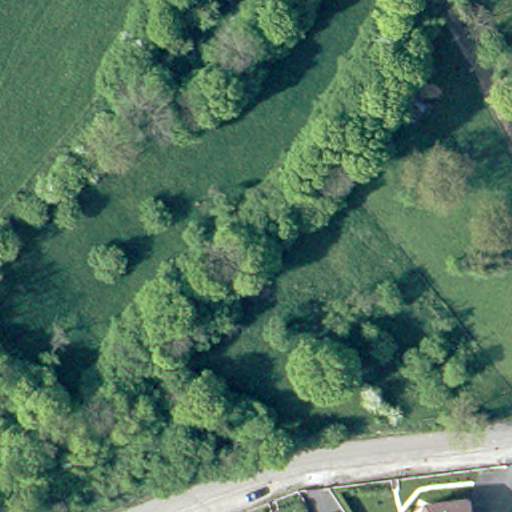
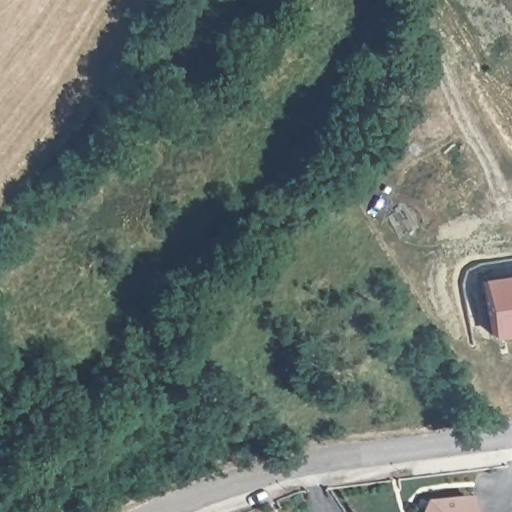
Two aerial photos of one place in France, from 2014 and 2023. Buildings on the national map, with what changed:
new [(493,331),(486,280),(512,277),(512,329),(493,331)]
unchanged [(471,512),(425,512),(431,498),(469,495),(471,512)]

